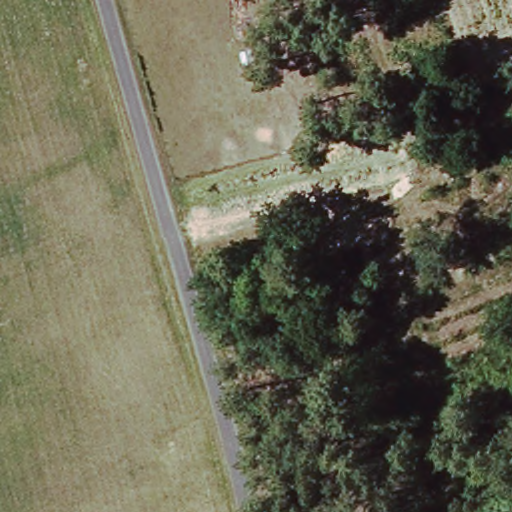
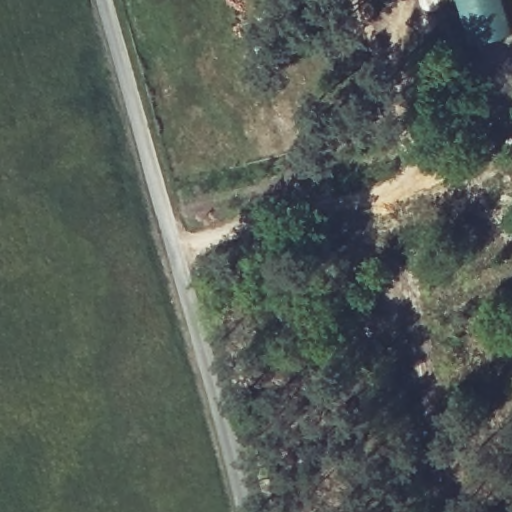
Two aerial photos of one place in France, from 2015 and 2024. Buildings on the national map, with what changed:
new [(505,35),(472,45),(459,0),(497,0),(505,35)]

